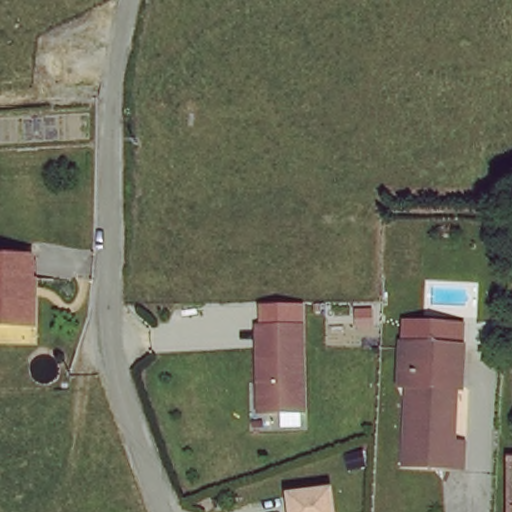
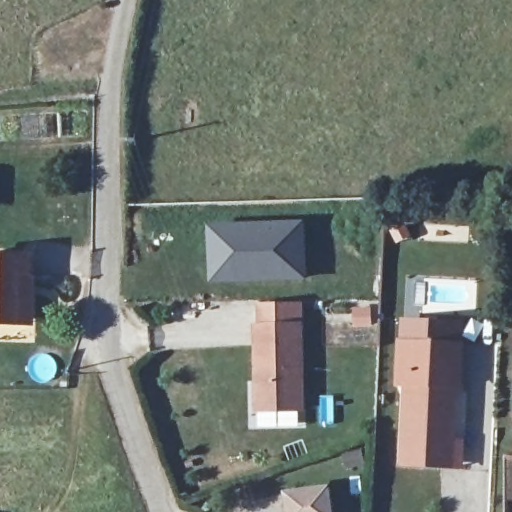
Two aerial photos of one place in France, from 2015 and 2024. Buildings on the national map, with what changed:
new [(306,217),(309,280),(207,282),(207,221),(306,217)]
unchanged [(35,328),(20,327),(0,327),(0,263),(28,264),(29,286),(35,286),(35,328)]
unchanged [(250,379),(251,342),(255,342),(255,323),(255,301),(296,302),(295,325),(295,408),(260,407),(251,407),(250,379)]
new [(390,323),(451,325),(452,348),(390,346),(390,323)]
unchanged [(458,466),(421,468),(400,467),(399,389),(390,388),(390,346),(452,348),(452,388),(446,387),(446,439),(460,440),(458,466)]
unchanged [(280,506),(319,494),(326,512),(282,512),(280,506)]

